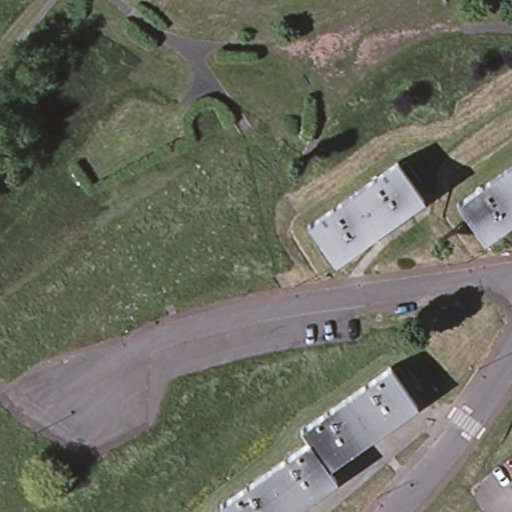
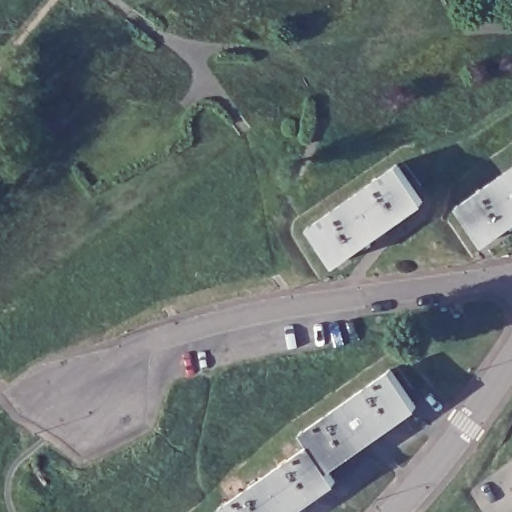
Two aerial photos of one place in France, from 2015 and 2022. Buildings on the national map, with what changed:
unchanged [(396,163),(419,198),(332,261),(307,226),(396,163)]
unchanged [(512,218),(480,241),(456,205),(512,165),(512,218)]
unchanged [(308,441),(302,430),(389,369),(413,404),(328,465),(334,475),(282,512),(229,512),(223,503),(308,441)]

